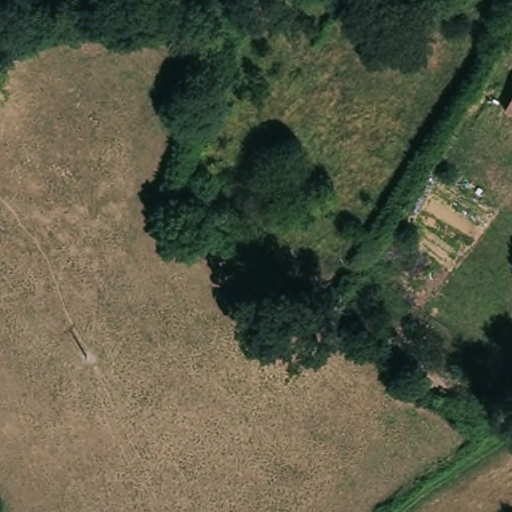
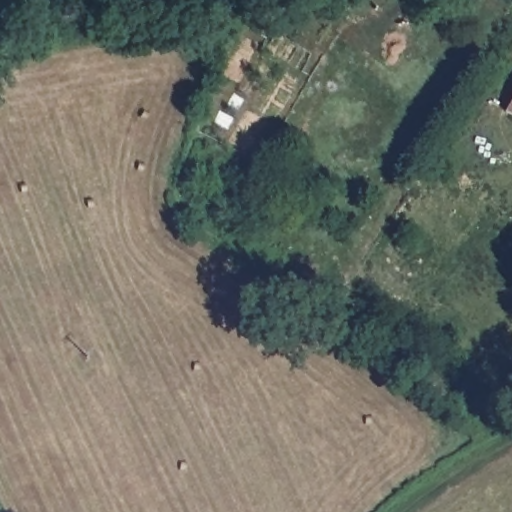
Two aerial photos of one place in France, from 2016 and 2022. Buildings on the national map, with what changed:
unchanged [(512,109),(509,106),(512,101),(512,109)]

